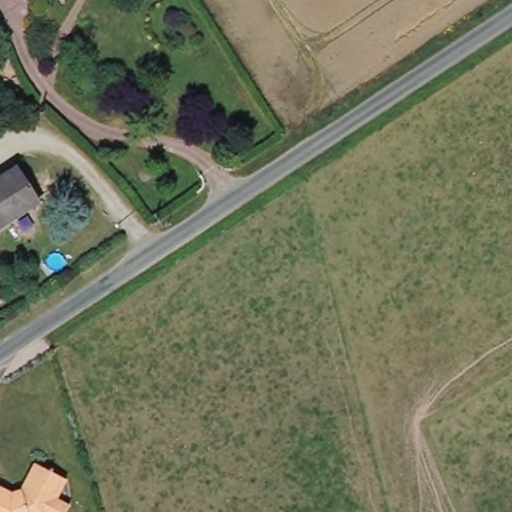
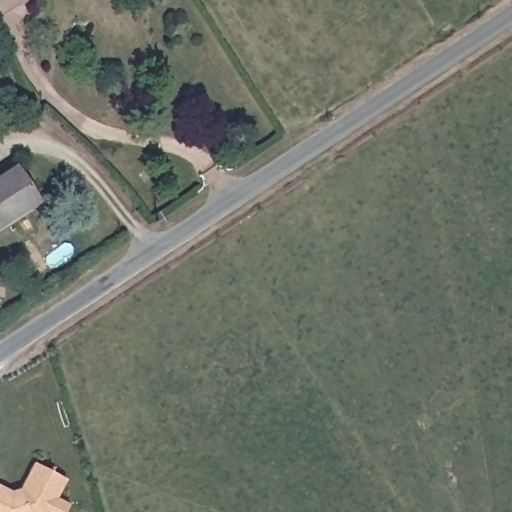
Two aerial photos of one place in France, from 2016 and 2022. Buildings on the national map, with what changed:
unchanged [(12,167),(32,197),(36,204),(29,208),(0,226),(0,175),(12,167)]
unchanged [(6,494),(16,492),(31,466),(66,480),(56,500),(69,506),(66,512),(0,512),(0,491),(6,494)]

